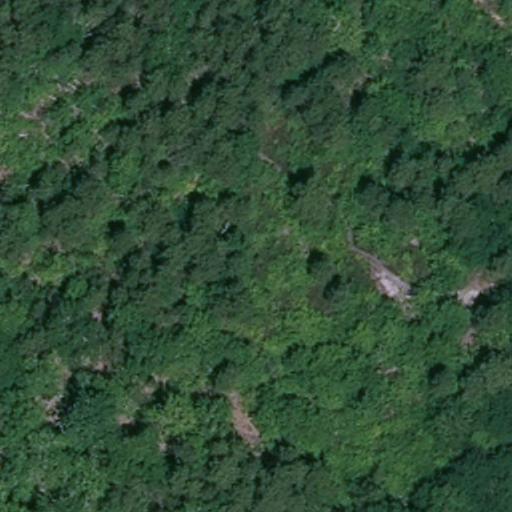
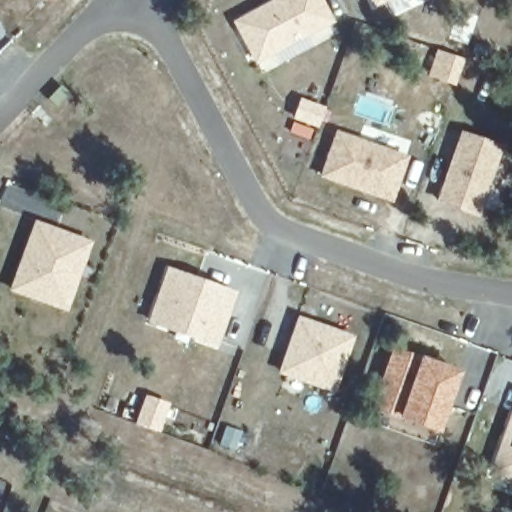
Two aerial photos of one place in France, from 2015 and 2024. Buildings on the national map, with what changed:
new [(256,64),(235,22),(276,0),(320,0),(331,22),(256,64)]
new [(372,0),(391,0),(375,7),(372,0)]
new [(436,49),(480,65),(472,91),(427,77),(436,49)]
new [(300,97),(326,106),(318,130),(314,128),(310,140),(289,132),(300,97)]
new [(335,130),(409,156),(392,204),(318,177),(335,130)]
new [(437,202),(461,132),(503,147),(479,218),(437,202)]
new [(10,292),(36,221),(92,242),(66,312),(10,292)]
new [(218,348),(149,323),(168,268),(237,292),(218,348)]
new [(356,337),(336,393),(279,375),(300,317),(356,337)]
new [(461,373),(437,433),(398,418),(371,407),(395,347),(420,357),(461,373)]
new [(490,473),(512,412),(512,481),(490,473)]

